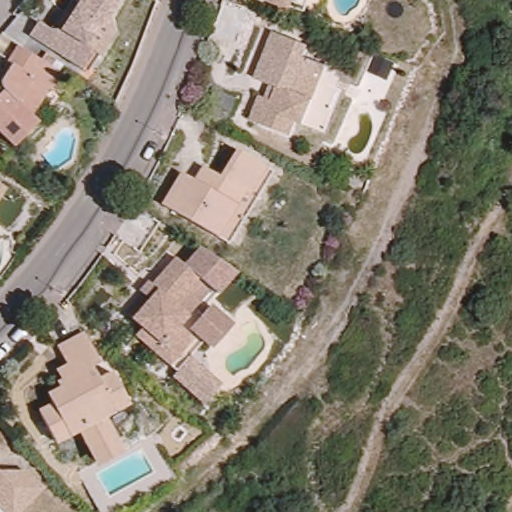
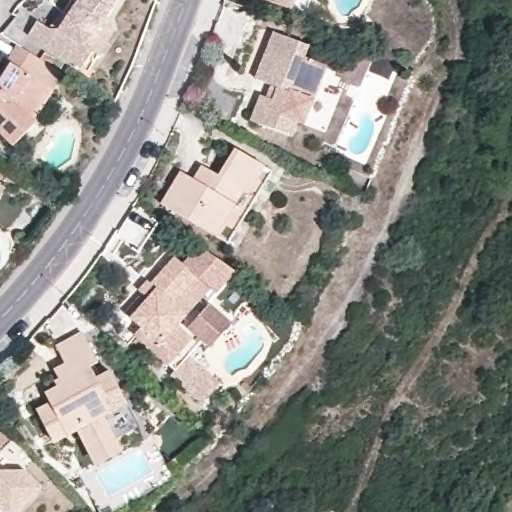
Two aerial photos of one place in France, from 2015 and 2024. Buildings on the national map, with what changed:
unchanged [(76,0),(116,0),(118,1),(105,20),(110,36),(86,76),(28,37),(38,24),(48,30),(53,20),(59,24),(76,0)]
unchanged [(271,7),(252,0),(273,0),(271,7)]
unchanged [(296,17),(271,7),(273,0),(303,0),(296,17)]
unchanged [(255,81),(275,31),(308,45),(304,56),(326,65),(321,80),(303,124),(295,121),(289,135),(251,120),(260,98),(265,100),(271,87),(255,81)]
unchanged [(49,90),(30,118),(35,123),(9,149),(0,139),(0,91),(0,90),(0,67),(15,41),(20,45),(64,73),(52,92),(49,90)]
unchanged [(225,146),(263,165),(224,239),(154,202),(169,174),(185,181),(190,170),(192,164),(200,168),(210,174),(225,146)]
unchanged [(201,245),(235,275),(208,306),(231,327),(207,355),(186,338),(183,335),(198,318),(188,308),(192,304),(179,292),(192,278),(181,267),(201,245)]
unchanged [(188,308),(198,318),(183,335),(186,338),(163,364),(130,334),(136,326),(121,312),(138,293),(139,292),(135,290),(143,280),(147,283),(146,285),(170,258),(181,267),(192,278),(179,292),(192,304),(188,308)]
unchanged [(50,442),(38,416),(51,409),(46,400),(59,393),(56,388),(62,385),(56,374),(66,369),(57,351),(85,337),(98,366),(90,370),(98,384),(111,377),(124,402),(126,406),(112,414),(100,420),(118,454),(95,465),(79,433),(66,439),(53,446),(50,442)]
unchanged [(171,377),(191,356),(221,384),(202,405),(171,377)]
unchanged [(37,488),(13,512),(1,512),(0,511),(0,472),(20,472),(37,488)]

